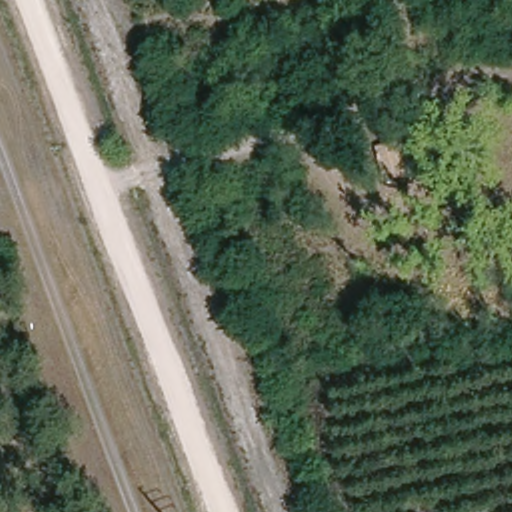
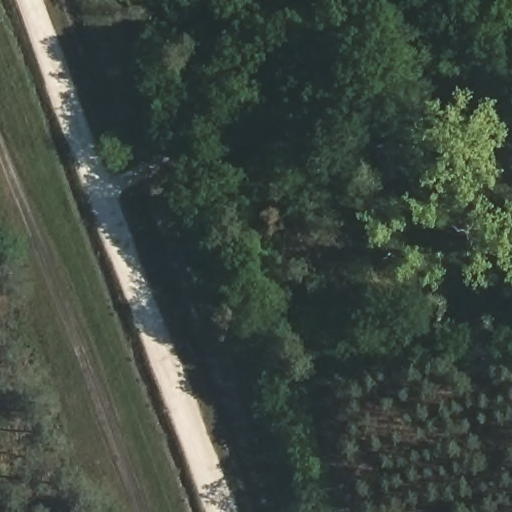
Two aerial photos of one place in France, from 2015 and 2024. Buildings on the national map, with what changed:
unchanged [(439,126),(448,166),(434,170),(422,130),(439,126)]

